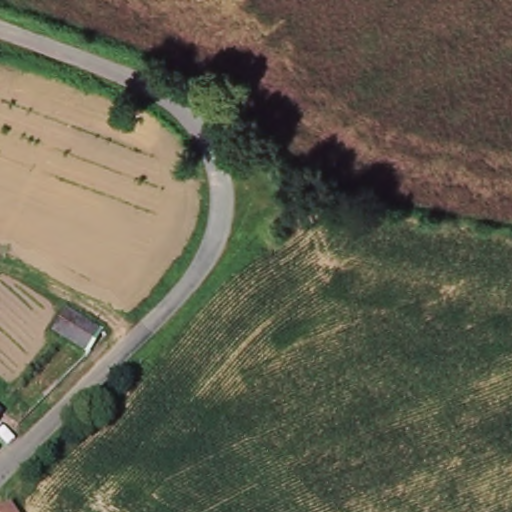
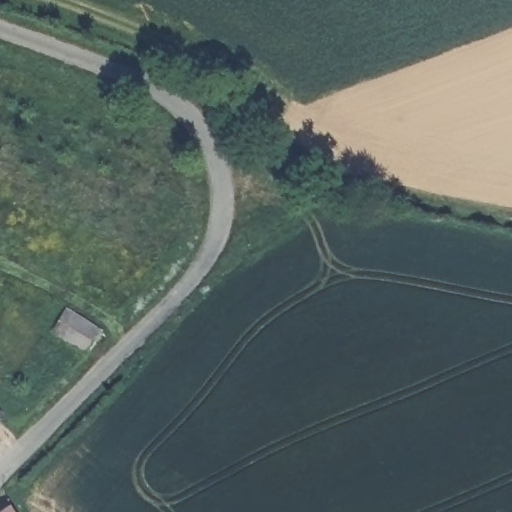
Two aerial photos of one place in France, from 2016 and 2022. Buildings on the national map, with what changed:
unchanged [(81,346),(77,344),(49,326),(64,305),(95,325),(81,346)]
unchanged [(0,512),(0,509),(8,503),(14,512),(0,512)]

